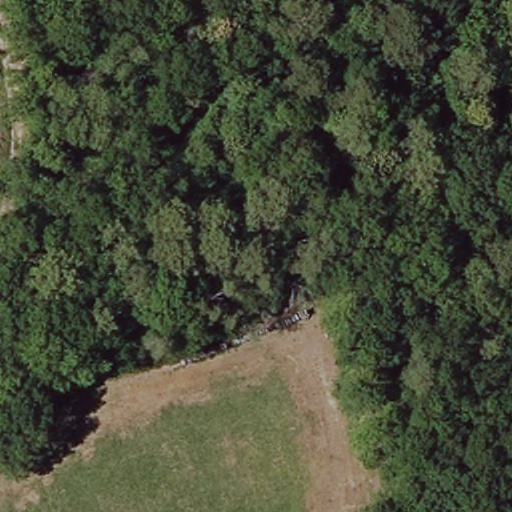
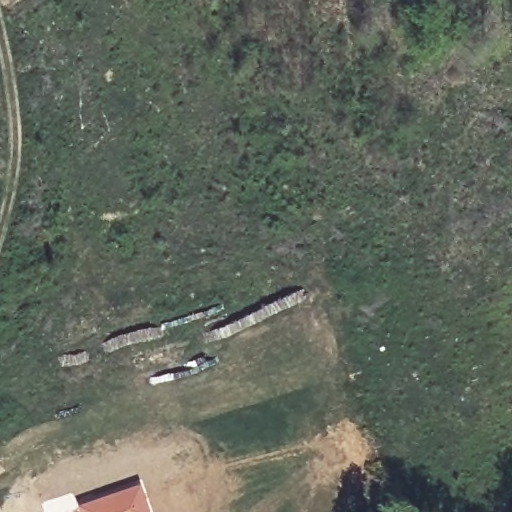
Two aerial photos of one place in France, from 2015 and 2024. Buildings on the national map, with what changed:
new [(149,512),(79,512),(76,504),(138,482),(149,512)]

